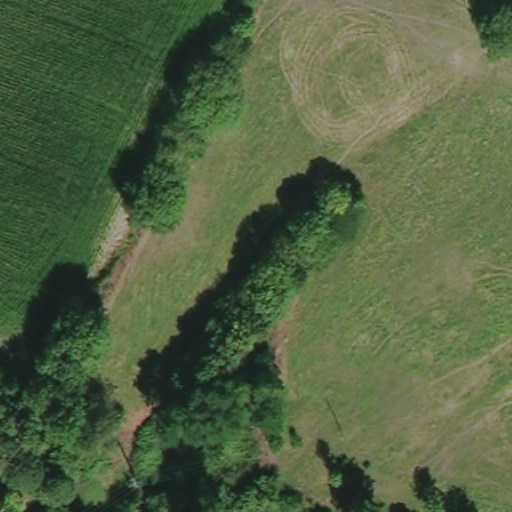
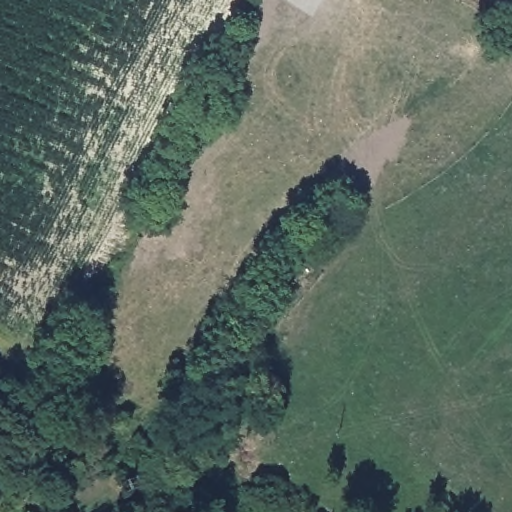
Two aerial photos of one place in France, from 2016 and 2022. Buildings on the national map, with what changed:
[]

